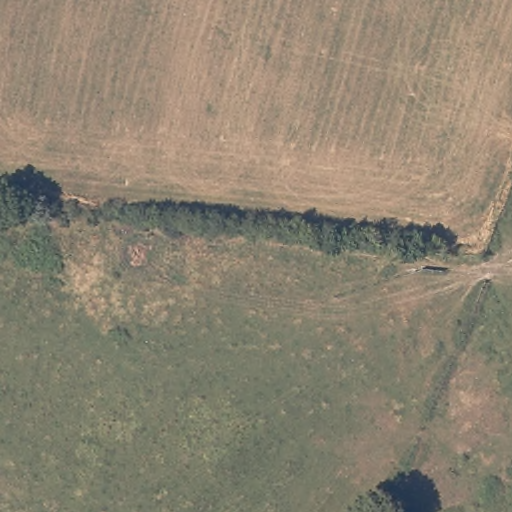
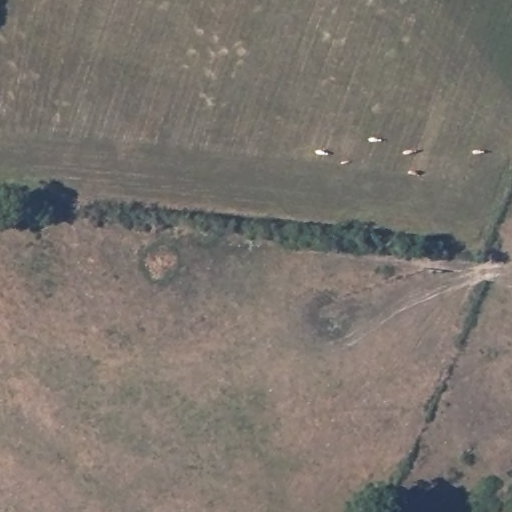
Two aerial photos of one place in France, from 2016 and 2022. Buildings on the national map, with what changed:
[]

